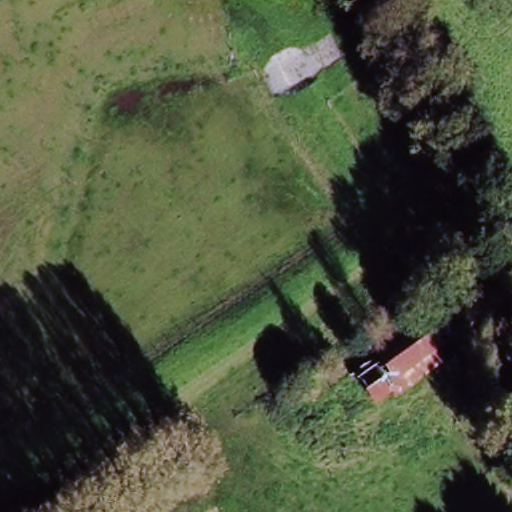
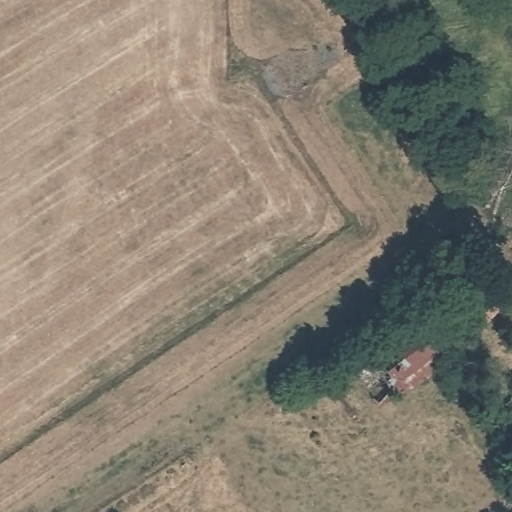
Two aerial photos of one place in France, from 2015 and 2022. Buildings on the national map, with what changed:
unchanged [(484,282),(501,305),(451,341),(434,317),(484,282)]
unchanged [(451,341),(447,343),(454,353),(433,368),(411,332),(434,317),(451,341)]
unchanged [(351,372),(381,353),(411,332),(433,368),(378,406),(351,372)]

